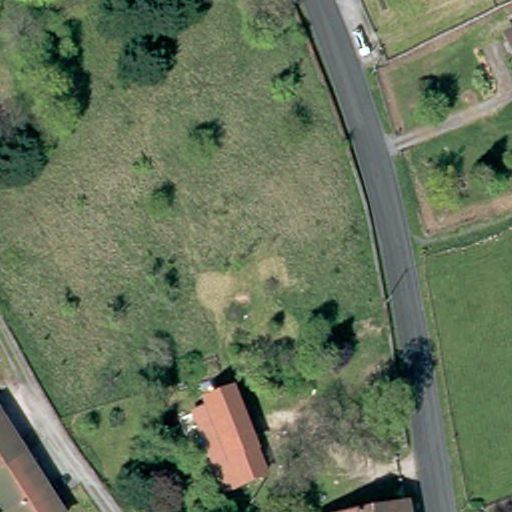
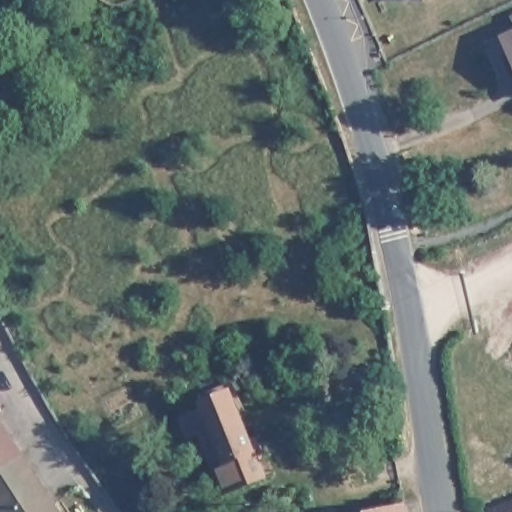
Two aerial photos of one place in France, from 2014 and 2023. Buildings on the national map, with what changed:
unchanged [(429,4),(427,0),(436,0),(429,4)]
unchanged [(512,40),(512,52),(508,42),(512,40)]
unchanged [(230,397),(267,475),(228,493),(211,457),(200,435),(191,416),(230,397)]
unchanged [(0,477),(0,423),(25,461),(0,477)]
unchanged [(25,461),(55,507),(59,512),(3,512),(0,507),(0,477),(25,461)]
unchanged [(377,512),(406,506),(407,512),(377,512)]

